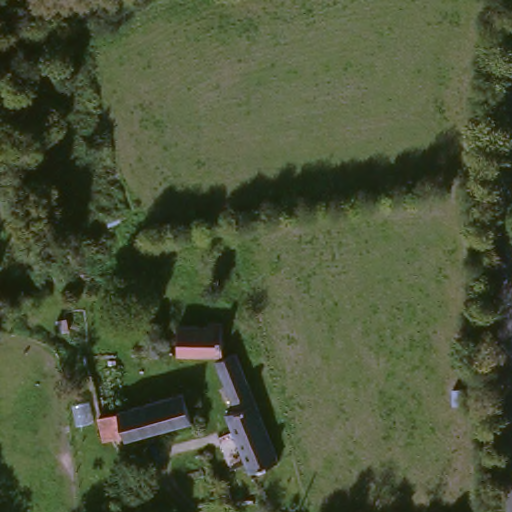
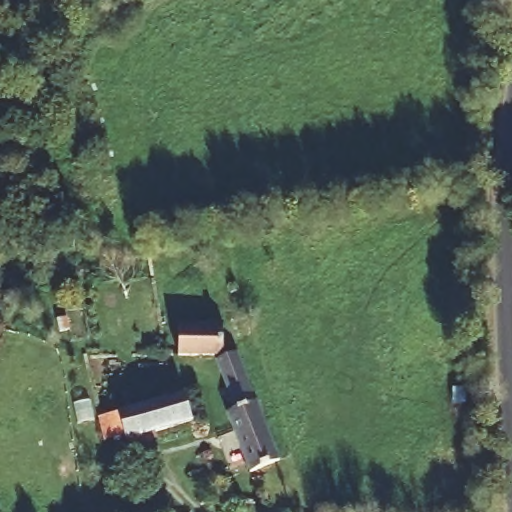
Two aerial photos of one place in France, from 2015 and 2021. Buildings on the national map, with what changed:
unchanged [(221,329),(222,362),(180,364),(179,333),(221,329)]
unchanged [(223,421),(231,417),(213,367),(234,360),(274,467),(244,480),(223,421)]
unchanged [(189,398),(198,426),(101,450),(96,429),(93,420),(189,398)]

